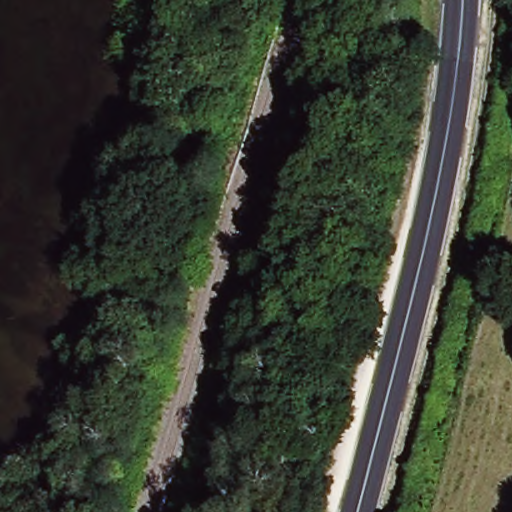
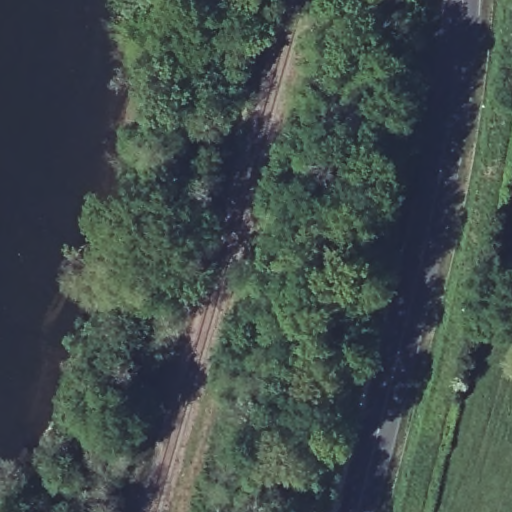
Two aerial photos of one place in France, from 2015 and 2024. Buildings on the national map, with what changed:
[]

